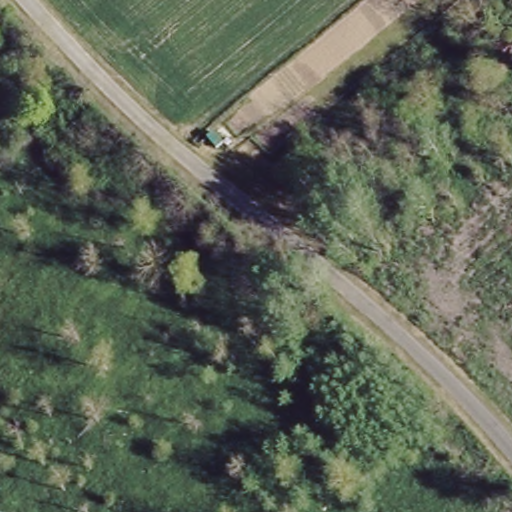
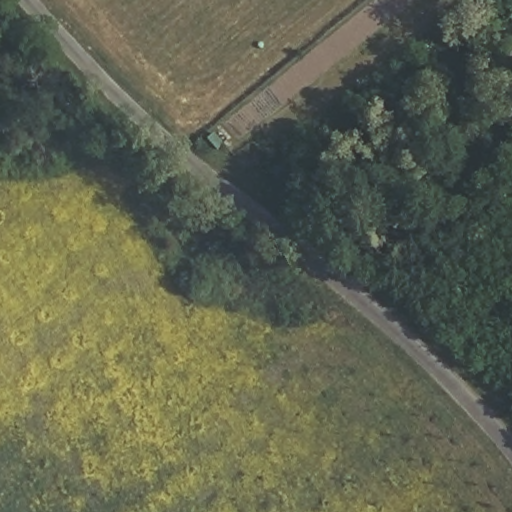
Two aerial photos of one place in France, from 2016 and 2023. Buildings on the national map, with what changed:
unchanged [(512,39),(512,40),(512,71),(505,77),(489,58),(512,39)]

